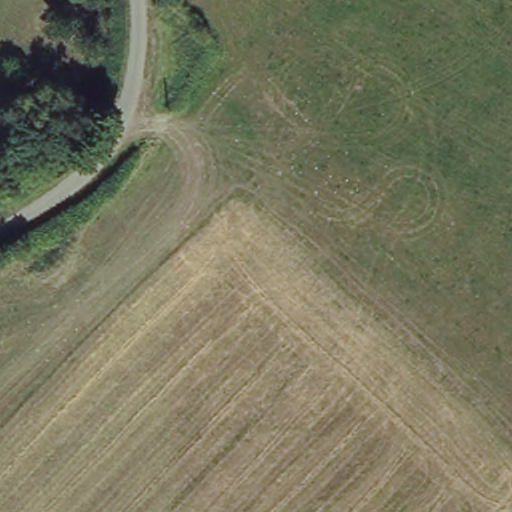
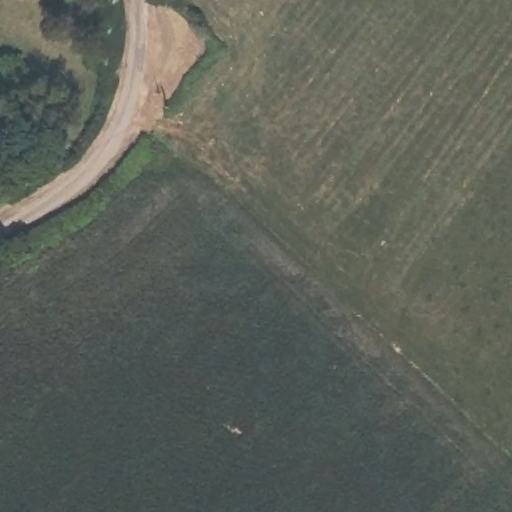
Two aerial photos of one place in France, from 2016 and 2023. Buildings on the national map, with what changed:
[]

